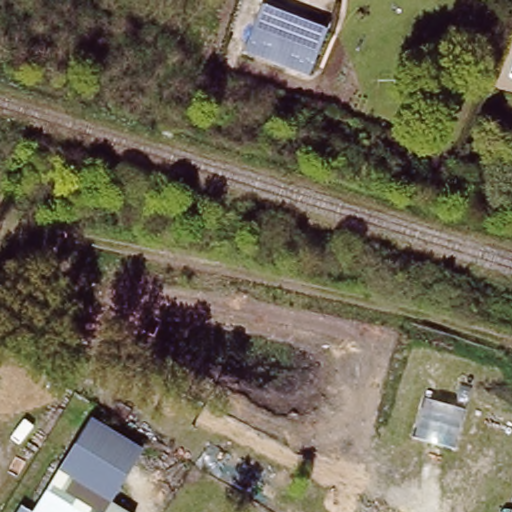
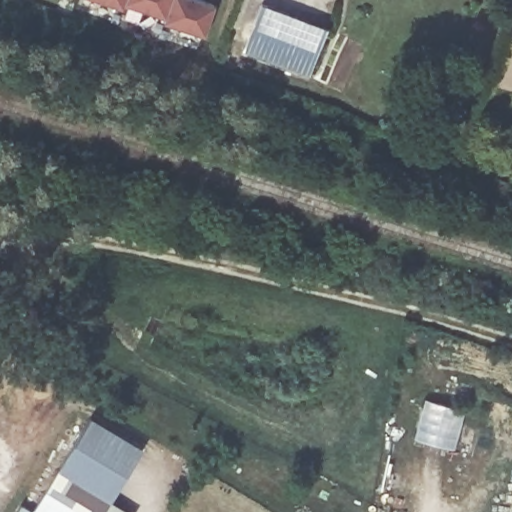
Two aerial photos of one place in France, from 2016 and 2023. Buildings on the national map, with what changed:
new [(204,36),(165,22),(166,16),(125,4),(122,9),(97,0),(202,0),(215,5),(204,36)]
unchanged [(325,27),(310,74),(245,55),(258,7),(325,27)]
unchanged [(140,450),(110,501),(126,512),(32,512),(58,472),(92,419),(140,450)]
unchanged [(21,505),(30,512),(17,512),(21,505)]

